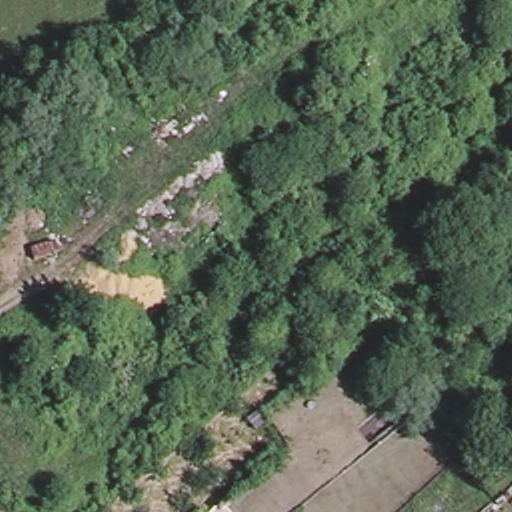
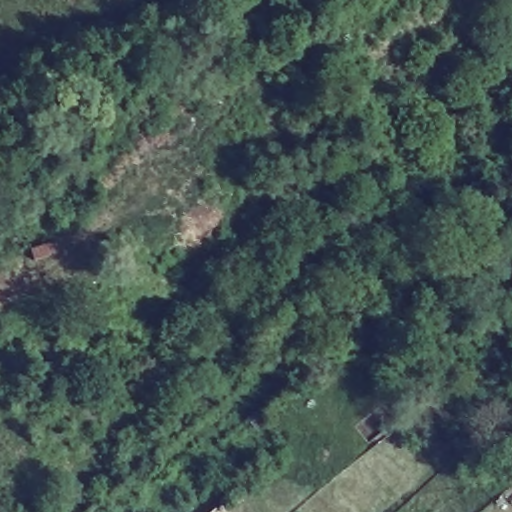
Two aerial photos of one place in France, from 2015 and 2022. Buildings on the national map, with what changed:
unchanged [(247,493),(232,508),(222,498),(237,484),(247,493)]

